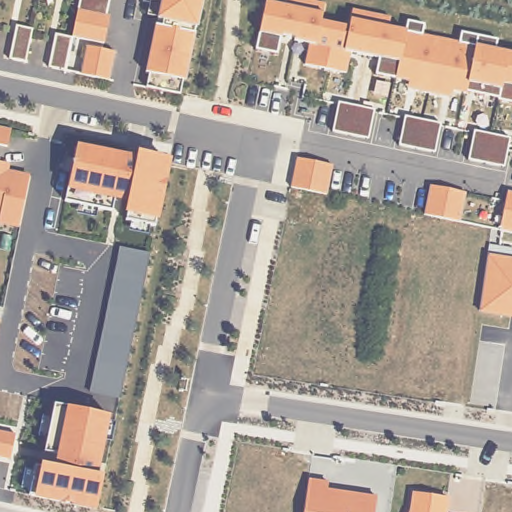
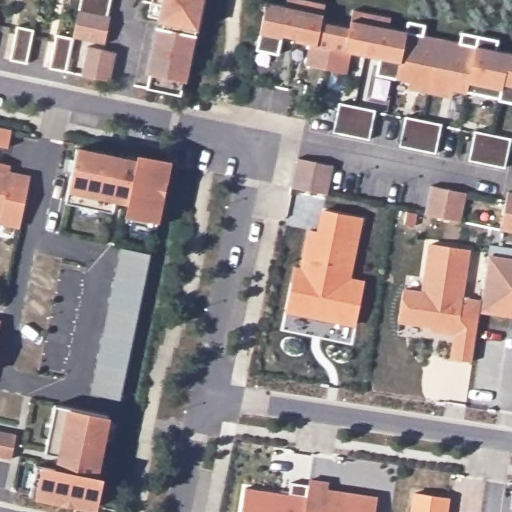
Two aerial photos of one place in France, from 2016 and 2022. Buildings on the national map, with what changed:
unchanged [(110,13),(104,43),(72,37),(79,0),(108,0),(106,11),(110,13)]
unchanged [(146,87),(148,74),(145,73),(155,22),(145,19),(149,0),(200,0),(181,95),(146,87)]
unchanged [(286,0),(314,0),(324,2),(321,19),(345,24),(350,9),(392,18),(390,29),(402,32),(406,21),(427,26),(425,36),(457,44),(460,31),(498,40),(497,50),(512,52),(512,103),(452,91),(452,99),(410,89),(411,82),(375,75),(378,59),(350,52),(346,77),(305,69),(310,43),(280,37),(276,57),(255,53),(265,0),(285,4),(286,0)]
unchanged [(25,65),(7,61),(15,26),(32,30),(25,65)]
unchanged [(72,39),(66,73),(47,69),(55,35),(72,39)]
unchanged [(119,53),(113,81),(77,74),(82,46),(119,53)]
unchanged [(375,110),(368,140),(333,132),(338,103),(375,110)]
unchanged [(441,125),(435,155),(397,147),(405,116),(441,125)]
unchanged [(6,149),(0,147),(0,128),(10,130),(6,149)]
unchanged [(512,137),(505,170),(467,161),(474,129),(512,137)]
unchanged [(132,155),(132,152),(171,160),(159,225),(121,219),(124,204),(111,201),(110,210),(66,201),(77,145),(132,155)]
unchanged [(334,164),(328,197),(290,191),(296,156),(334,164)]
unchanged [(10,174),(30,176),(20,230),(0,227),(0,163),(12,165),(10,174)]
unchanged [(468,191),(461,225),(425,217),(430,184),(468,191)]
unchanged [(512,192),(512,233),(498,230),(506,191),(512,192)]
new [(303,269),(311,231),(320,232),(325,210),(363,219),(351,279),(365,282),(356,325),(289,311),(295,283),(297,268),(303,269)]
new [(471,361),(448,357),(452,333),(428,330),(430,325),(397,320),(402,286),(420,288),(427,241),(470,248),(463,295),(480,297),(477,315),(471,361)]
unchanged [(150,255),(118,402),(89,395),(120,247),(150,255)]
unchanged [(512,258),(512,320),(477,315),(486,254),(512,258)]
unchanged [(111,417),(93,512),(82,512),(34,500),(52,405),(111,417)]
unchanged [(10,464),(0,462),(0,431),(15,435),(10,464)]
unchanged [(325,483),(324,490),(377,498),(375,512),(302,512),(307,478),(325,483)]
unchanged [(302,512),(242,512),(246,487),(288,493),(290,482),(306,485),(302,512)]
unchanged [(450,500),(447,512),(409,512),(411,493),(450,500)]

